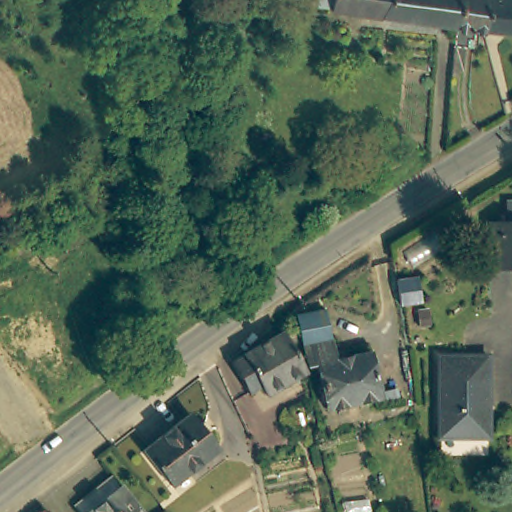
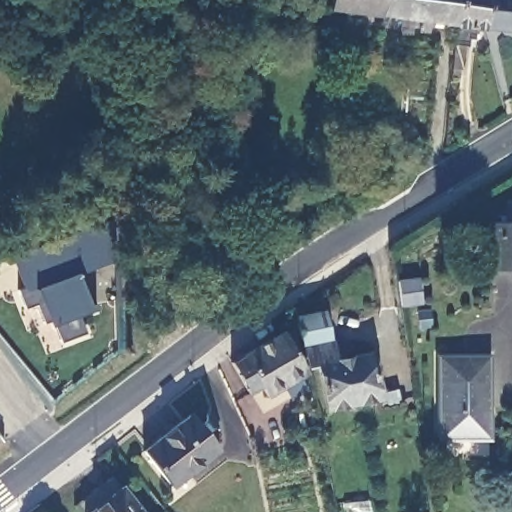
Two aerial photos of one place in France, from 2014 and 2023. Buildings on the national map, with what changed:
unchanged [(295,0),(387,0),(386,16),(334,11),(334,8),(294,3),(295,0)]
unchanged [(490,28),(480,26),(479,37),(473,36),(472,44),(470,44),(467,66),(463,66),(463,73),(457,73),(457,68),(461,25),(386,16),(387,0),(494,0),(490,28)]
unchanged [(494,0),(512,0),(512,30),(495,28),(490,28),(494,0)]
unchanged [(218,20),(239,21),(237,41),(217,40),(218,20)]
unchanged [(484,220),(502,220),(502,200),(512,200),(512,268),(503,268),(486,268),(484,220)]
new [(60,341),(54,324),(48,325),(35,288),(23,254),(116,220),(126,252),(77,273),(88,304),(95,302),(96,308),(79,314),(84,332),(60,341)]
demolished [(54,275),(11,291),(10,287),(5,273),(48,258),(54,275)]
unchanged [(396,278),(416,275),(419,300),(399,302),(396,278)]
unchanged [(270,398),(247,357),(282,333),(277,323),(274,319),(295,304),(295,310),(299,329),(288,337),(308,373),(270,398)]
unchanged [(340,361),(357,357),(354,348),(369,344),(372,353),(382,399),(329,410),(320,365),(310,367),(306,346),(300,316),(326,311),(333,341),(335,340),(340,361)]
unchanged [(477,359),(491,359),(492,401),(481,401),(478,401),(478,409),(481,410),(484,410),(486,440),(442,439),(442,419),(441,359),(477,359)]
unchanged [(147,451),(192,415),(221,452),(190,476),(174,489),(171,484),(147,451)]
unchanged [(141,512),(81,512),(119,484),(141,512)]

